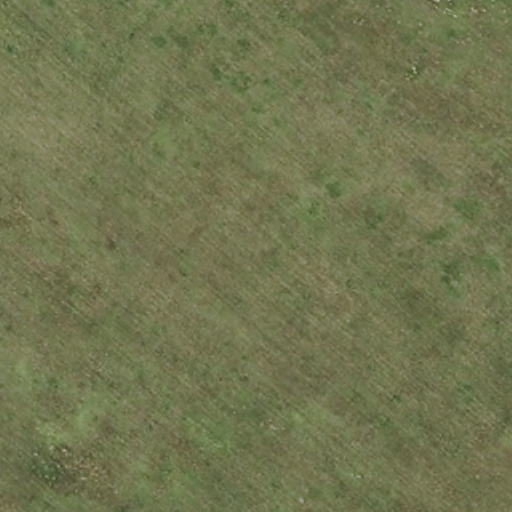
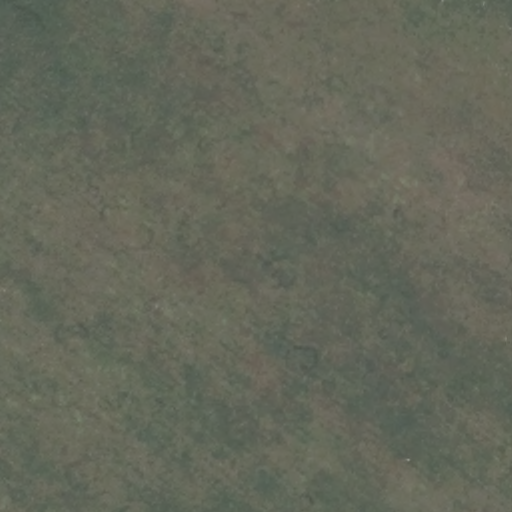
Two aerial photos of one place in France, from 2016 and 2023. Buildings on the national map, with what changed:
[]

